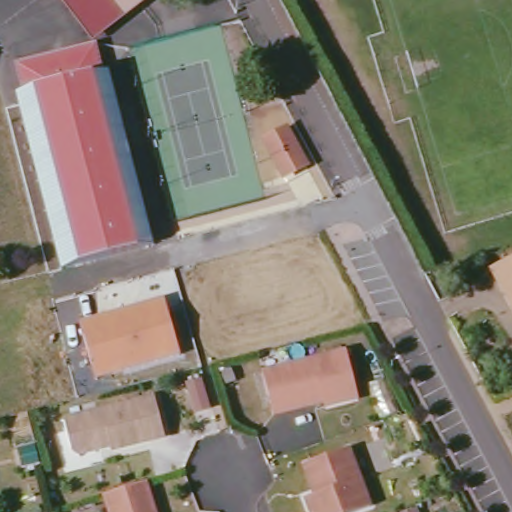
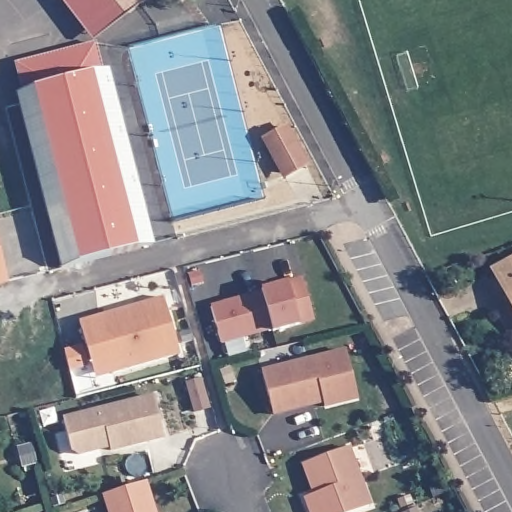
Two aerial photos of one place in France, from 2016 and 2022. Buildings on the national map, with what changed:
unchanged [(60,11),(52,0),(138,0),(84,42),(60,11)]
unchanged [(63,271),(16,95),(21,93),(15,65),(98,44),(106,74),(111,71),(156,245),(63,271)]
unchanged [(283,133),(301,166),(278,179),(260,144),(283,133)]
new [(0,285),(0,250),(8,283),(0,285)]
unchanged [(512,257),(512,306),(492,269),(512,257)]
new [(262,290),(288,282),(301,278),(314,320),(299,325),(271,333),(223,345),(211,307),(262,290)]
unchanged [(183,357),(99,381),(81,323),(165,299),(183,357)]
unchanged [(268,417),(257,373),(341,352),(353,401),(320,410),(318,404),(286,412),(268,417)]
unchanged [(193,378),(201,407),(187,411),(179,383),(193,378)]
unchanged [(150,393),(160,436),(105,449),(104,443),(100,444),(98,447),(74,452),(66,448),(58,414),(150,393)]
unchanged [(295,495),(310,488),(300,459),(341,445),(363,504),(341,512),(301,512),(295,495)]
unchanged [(25,453),(29,471),(12,476),(8,457),(25,453)]
unchanged [(141,480),(151,512),(105,512),(99,493),(141,480)]

